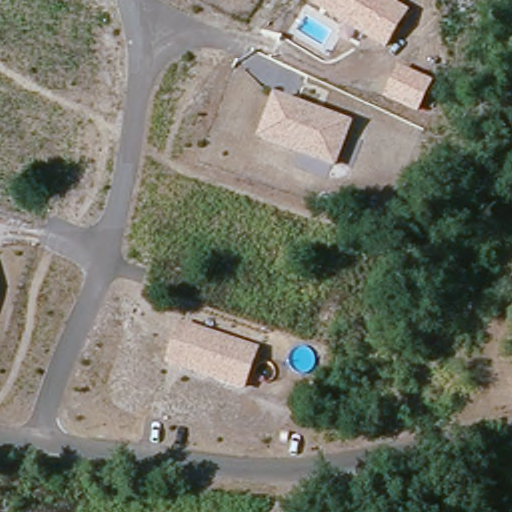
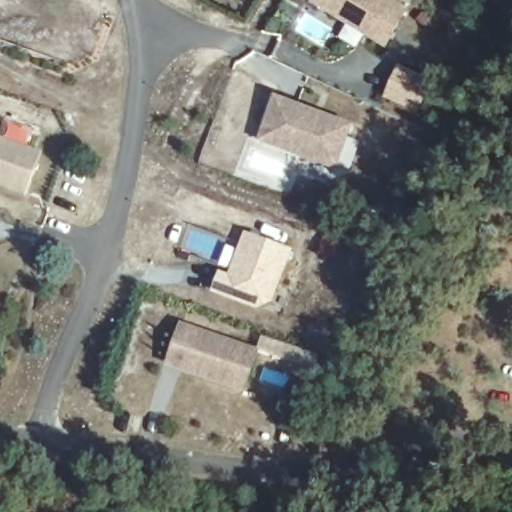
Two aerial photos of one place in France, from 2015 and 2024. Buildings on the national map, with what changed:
unchanged [(386,51),(311,2),(312,0),(392,0),(408,10),(386,51)]
unchanged [(433,80),(418,112),(385,96),(398,66),(433,80)]
unchanged [(256,144),(271,96),(355,123),(335,170),(256,144)]
new [(44,152),(28,197),(0,187),(0,136),(44,152)]
new [(292,249),(273,302),(255,309),(210,293),(219,271),(228,275),(244,232),(292,249)]
unchanged [(165,367),(179,322),(261,347),(246,392),(165,367)]

